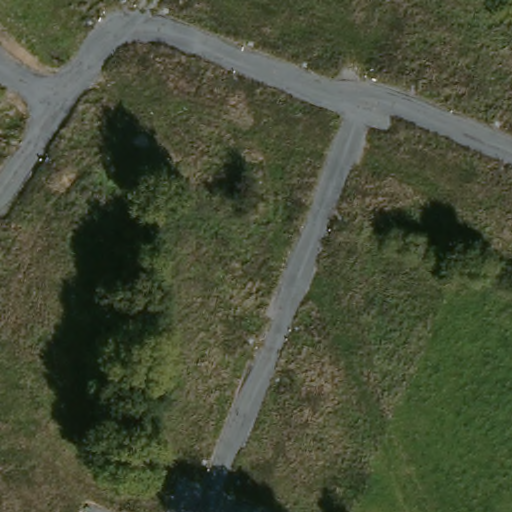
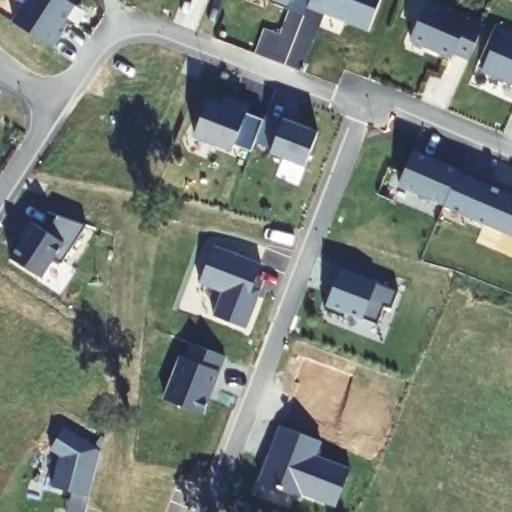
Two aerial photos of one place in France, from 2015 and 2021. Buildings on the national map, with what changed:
new [(69,0),(75,4),(59,30),(63,32),(54,46),(15,21),(28,0),(69,0)]
new [(274,0),(295,0),(292,7),(274,0)]
new [(382,0),(372,26),(311,4),(312,0),(382,0)]
new [(429,0),(485,24),(471,56),(457,51),(454,56),(413,38),(429,0)]
new [(502,28),(512,32),(512,80),(484,68),(502,28)]
unchanged [(208,99),(221,104),(224,96),(249,106),(247,114),(264,120),(251,153),(234,146),(232,151),(194,136),(208,99)]
new [(285,120),(320,133),(307,168),(272,155),(285,120)]
new [(416,151),(462,170),(448,203),(402,184),(416,151)]
new [(489,178),(512,188),(512,234),(448,203),(462,170),(488,183),(489,178)]
new [(25,241),(23,239),(34,223),(45,230),(46,232),(51,230),(60,216),(90,226),(65,265),(57,259),(44,279),(14,259),(25,241)]
new [(213,315),(222,292),(199,283),(214,247),(260,266),(249,295),(257,299),(246,327),(213,315)]
new [(343,265),(364,270),(361,278),(399,293),(393,311),(385,308),(379,326),(347,314),(345,319),(325,312),(343,265)]
new [(270,456),(275,458),(286,427),(321,441),(316,455),(351,468),(337,505),(302,492),(300,496),(260,481),(270,456)]
new [(54,486),(62,454),(52,448),(64,428),(95,447),(102,435),(105,436),(101,451),(90,496),(86,512),(68,512),(73,491),(54,486)]

